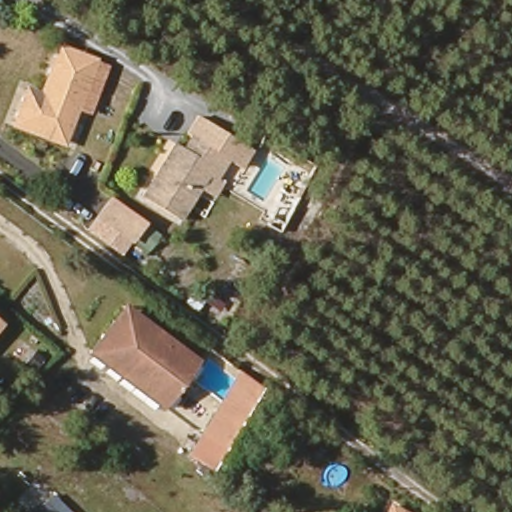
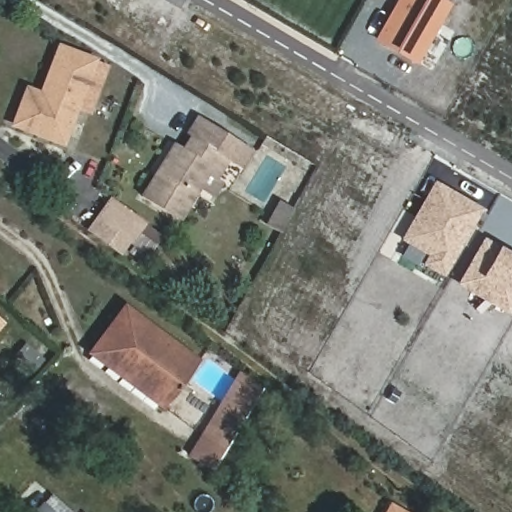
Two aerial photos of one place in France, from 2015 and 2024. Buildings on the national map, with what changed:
new [(373,40),(396,0),(445,0),(452,4),(417,65),(373,40)]
unchanged [(87,111),(76,107),(62,142),(14,124),(27,89),(42,95),(60,47),(105,65),(87,111)]
unchanged [(145,196),(178,144),(186,150),(195,137),(190,134),(201,116),(253,149),(242,166),(230,159),(218,178),(210,173),(180,219),(145,196)]
new [(445,276),(422,265),(426,255),(400,240),(435,180),(482,209),(445,276)]
unchanged [(144,225),(131,241),(101,219),(114,202),(144,225)]
unchanged [(142,245),(135,240),(145,225),(152,230),(142,245)]
new [(498,244),(512,252),(512,308),(508,314),(456,285),(483,236),(498,244)]
unchanged [(199,363),(165,407),(91,351),(125,307),(199,363)]
unchanged [(25,365),(12,355),(24,343),(35,353),(25,365)]
unchanged [(240,425),(220,410),(225,402),(234,409),(247,389),(237,381),(242,373),(263,388),(240,425)]
unchanged [(208,475),(186,462),(215,415),(235,430),(208,475)]
unchanged [(54,512),(29,512),(27,511),(40,498),(54,512)]
unchanged [(400,512),(375,512),(381,501),(400,512)]

